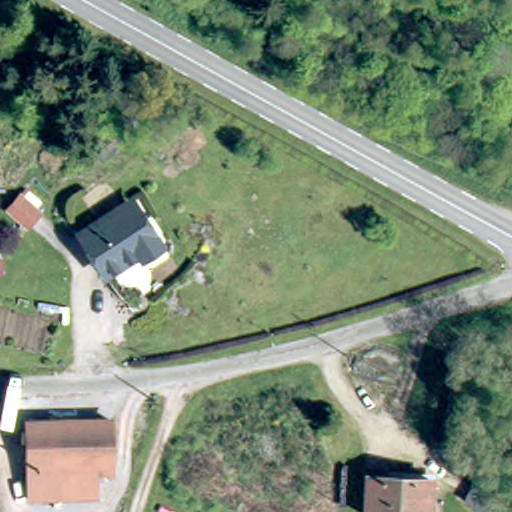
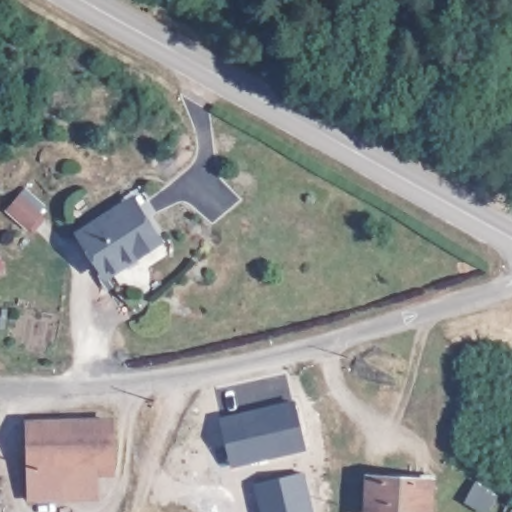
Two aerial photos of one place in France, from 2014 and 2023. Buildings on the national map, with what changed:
unchanged [(127,150),(109,162),(103,153),(122,141),(127,150)]
unchanged [(23,193),(42,213),(30,225),(11,206),(23,193)]
unchanged [(102,277),(100,273),(85,247),(80,236),(100,224),(128,208),(134,204),(145,224),(158,246),(161,251),(140,263),(137,257),(137,258),(102,277)]
new [(295,399),(307,449),(232,467),(220,416),(295,399)]
unchanged [(35,481),(35,472),(28,471),(28,427),(110,425),(110,468),(110,480),(47,481),(35,481)]
unchanged [(428,478),(427,512),(364,512),(366,475),(428,478)]
unchanged [(477,512),(458,498),(470,482),(490,495),(478,512),(477,512)]
unchanged [(512,512),(505,512),(508,507),(512,510),(512,512)]

